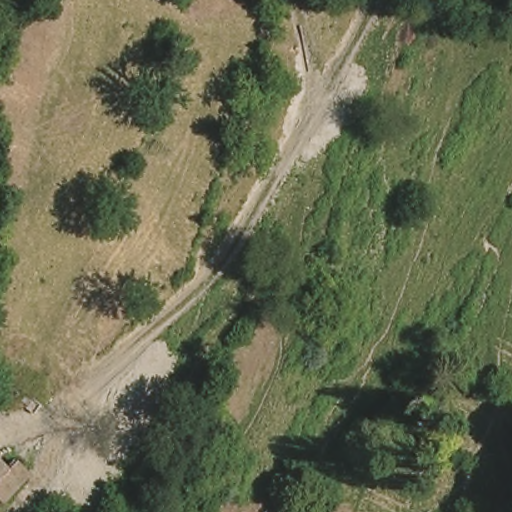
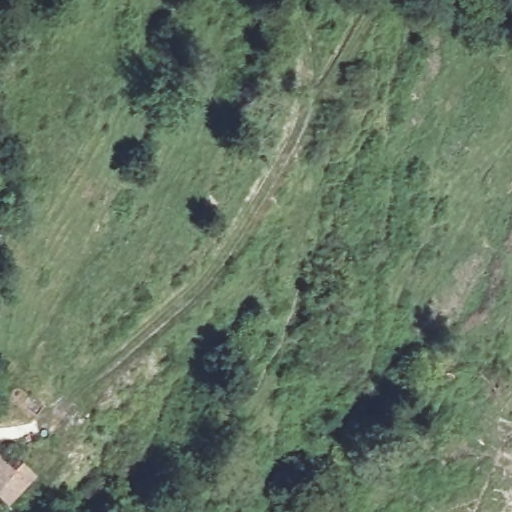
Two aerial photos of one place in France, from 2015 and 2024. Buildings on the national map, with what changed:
unchanged [(38,400),(30,409),(15,396),(25,387),(38,400)]
unchanged [(38,471),(10,503),(0,494),(0,453),(7,444),(38,471)]

